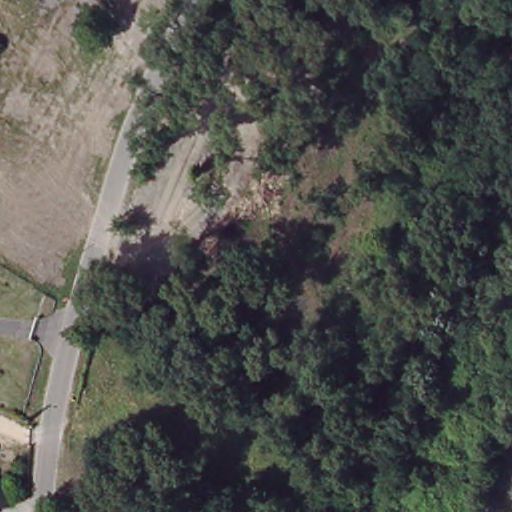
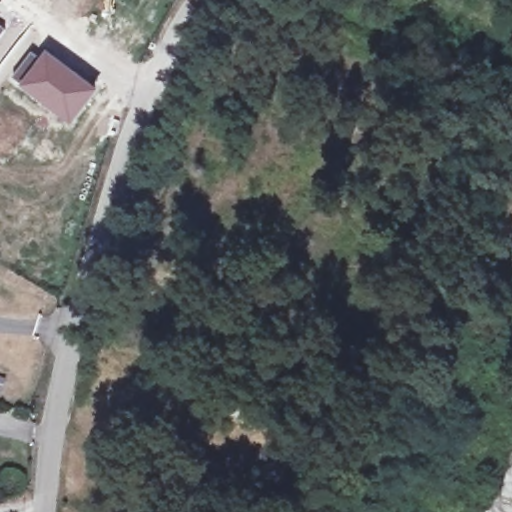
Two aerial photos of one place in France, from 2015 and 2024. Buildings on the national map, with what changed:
new [(1,16),(0,17),(0,15),(1,16)]
new [(6,31),(0,39),(0,27),(6,31)]
new [(30,49),(42,58),(49,51),(100,89),(72,126),(8,78),(30,49)]

